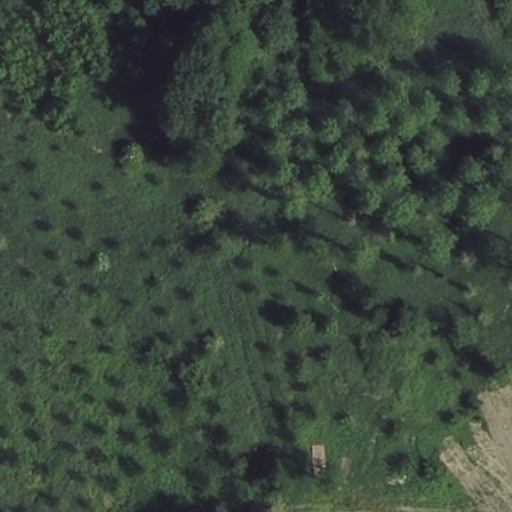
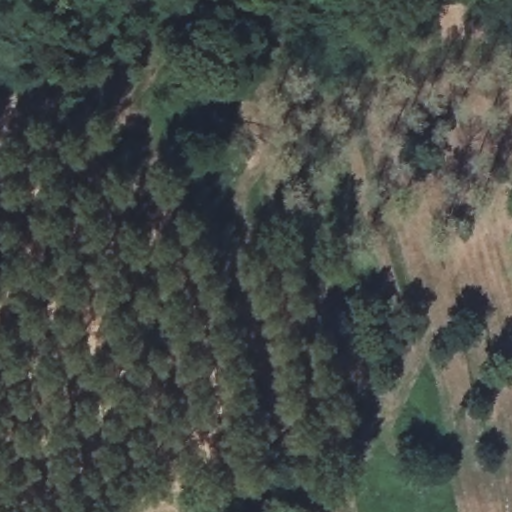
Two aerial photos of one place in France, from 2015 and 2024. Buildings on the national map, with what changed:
[]

